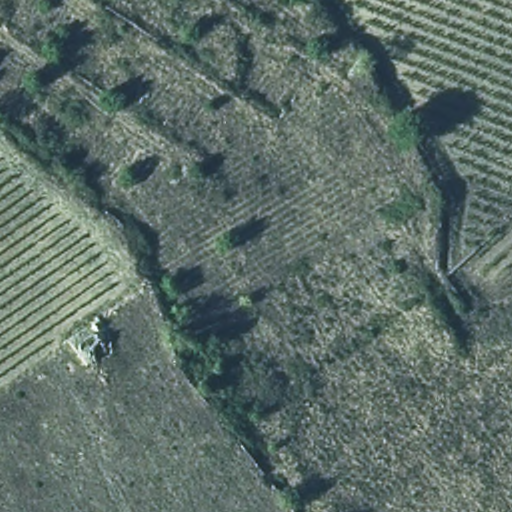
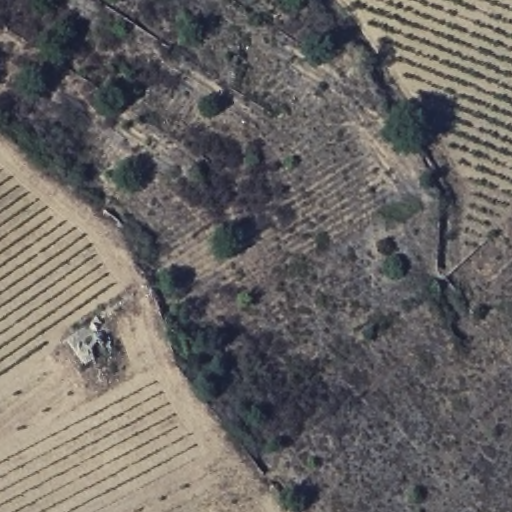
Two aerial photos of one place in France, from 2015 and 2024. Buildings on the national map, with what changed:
unchanged [(96,334),(103,347),(84,352),(77,344),(96,334)]

